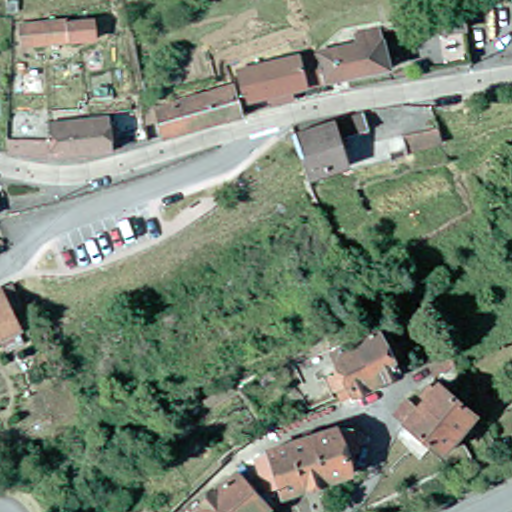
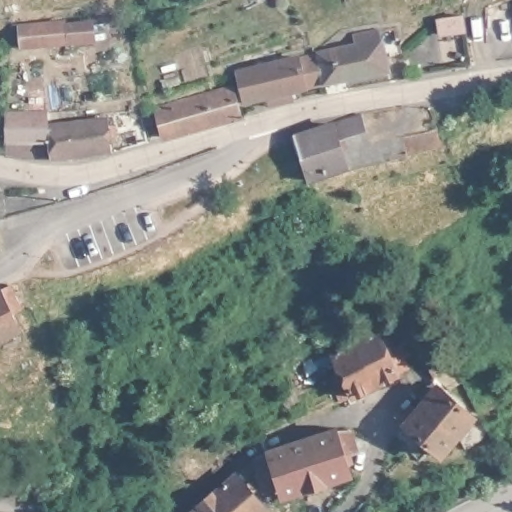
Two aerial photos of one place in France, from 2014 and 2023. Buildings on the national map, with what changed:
unchanged [(507,0),(512,0),(512,12),(507,0)]
unchanged [(469,32),(442,37),(439,21),(467,16),(469,32)]
unchanged [(1,22),(48,18),(49,20),(75,17),(78,37),(51,39),(3,44),(1,22)]
unchanged [(315,76),(309,51),(349,41),(346,29),(371,23),(381,66),(316,81),(315,76)]
unchanged [(286,98),(281,99),(261,104),(259,94),(237,99),(231,71),(232,71),(309,51),(315,76),(316,81),(284,89),(286,97),(286,98)]
unchanged [(205,122),(156,135),(149,107),(226,85),(236,112),(205,122)]
unchanged [(124,114),(108,115),(107,107),(124,106),(124,114)]
unchanged [(40,122),(79,117),(78,110),(93,108),(94,116),(101,115),(104,149),(44,156),(40,124),(40,122)]
unchanged [(306,173),(296,145),(292,130),(329,119),(358,110),(363,125),(344,131),(346,141),(338,144),(343,161),(306,173)]
unchanged [(44,156),(0,150),(0,120),(40,124),(44,156)]
unchanged [(448,145),(414,156),(411,145),(444,135),(448,145)]
unchanged [(0,337),(0,286),(6,282),(20,308),(11,313),(18,328),(0,337)]
unchanged [(374,340),(380,337),(381,340),(391,335),(404,363),(393,368),(395,372),(371,382),(349,335),(367,326),(374,340)]
unchanged [(349,393),(349,391),(336,397),(323,367),(333,363),(332,361),(336,358),(329,343),(349,335),(371,382),(349,393)]
unchanged [(422,363),(422,362),(440,352),(446,363),(449,369),(429,378),(427,372),(422,363)]
unchanged [(423,403),(418,398),(430,385),(472,419),(456,437),(419,408),(423,403)]
unchanged [(438,458),(403,428),(391,418),(403,403),(415,413),(419,408),(456,437),(438,458)]
unchanged [(267,491),(261,483),(268,477),(263,460),(259,461),(256,447),(329,421),(346,421),(353,442),(346,444),(349,453),(344,454),(348,467),(279,489),(271,496),(267,491)]
unchanged [(196,494),(196,492),(200,488),(208,481),(209,482),(215,478),(221,473),(231,465),(240,457),(251,468),(247,472),(251,478),(247,482),(253,490),(261,483),(267,491),(271,496),(251,512),(176,512),(187,502),(196,494)]

